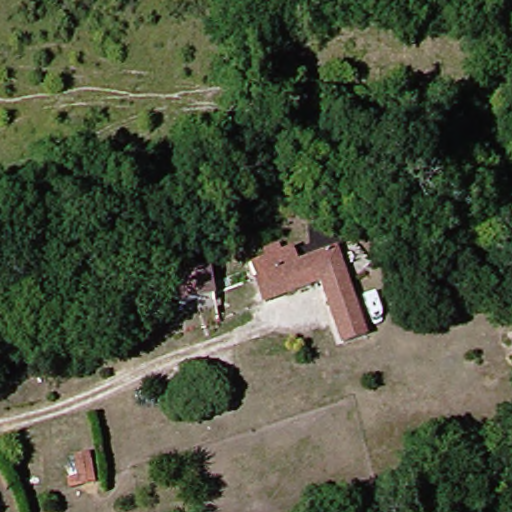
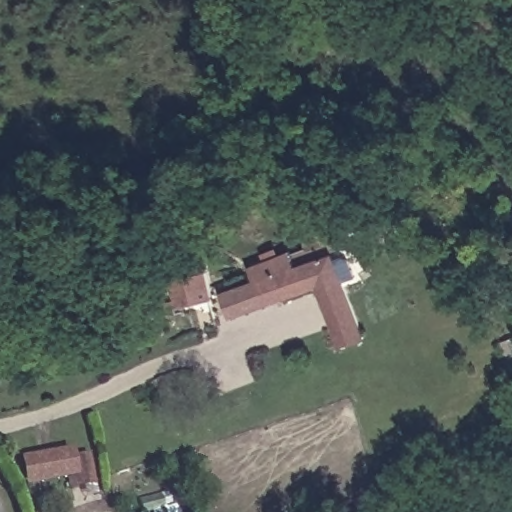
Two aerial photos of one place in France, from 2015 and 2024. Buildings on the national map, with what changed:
unchanged [(359,340),(333,348),(314,285),(257,302),(251,281),(246,263),(264,258),(262,250),(273,247),(274,253),(290,249),(295,265),(305,262),(332,254),(359,340)]
unchanged [(176,307),(168,278),(198,271),(205,298),(176,307)]
unchanged [(512,340),(512,348),(510,340),(512,340)]
new [(96,485),(69,489),(67,480),(25,487),(20,457),(74,448),(75,456),(91,453),(96,485)]

